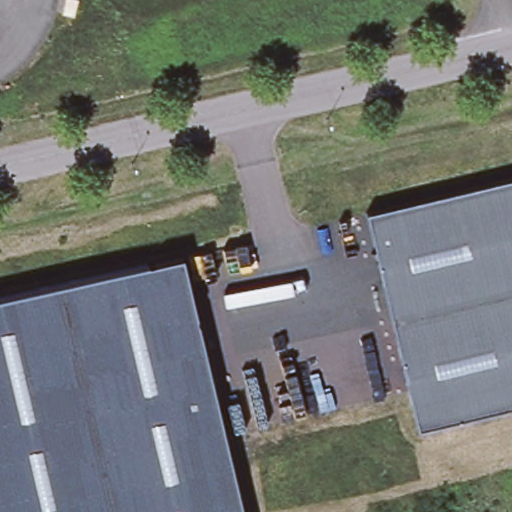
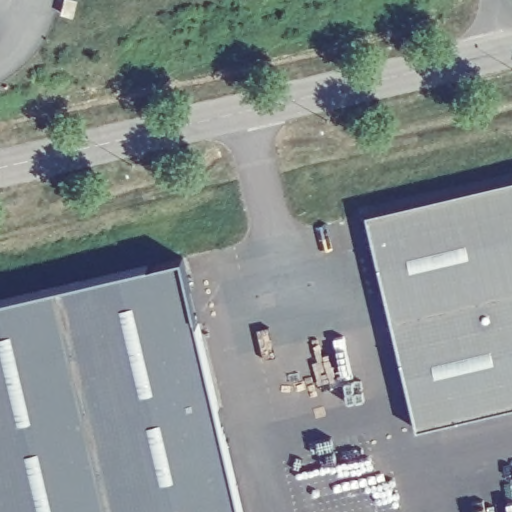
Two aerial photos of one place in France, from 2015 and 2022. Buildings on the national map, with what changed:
unchanged [(74,0),(85,2),(81,19),(70,17),(74,0)]
unchanged [(419,430),(368,215),(512,181),(512,409),(419,430)]
unchanged [(58,284),(180,255),(241,512),(0,512),(0,298),(30,290),(58,284)]

